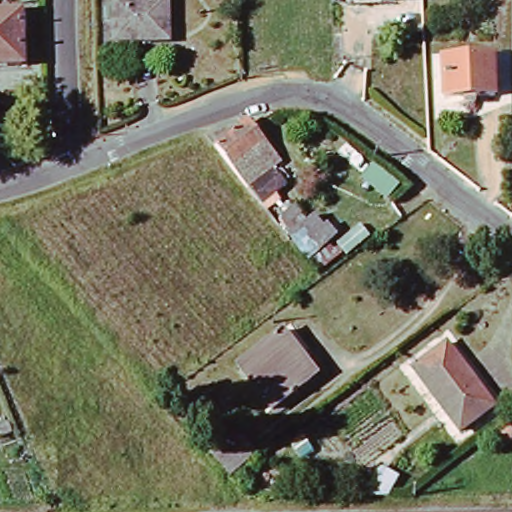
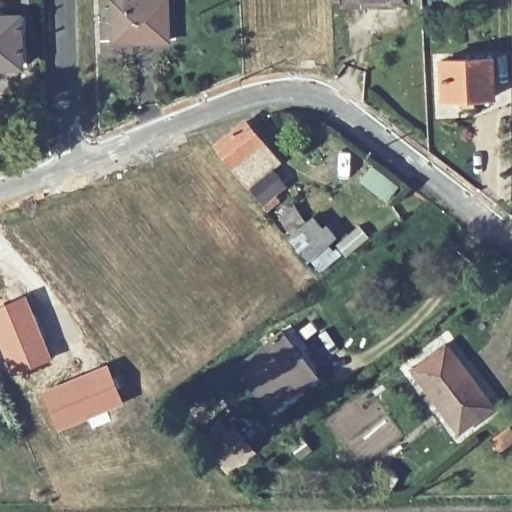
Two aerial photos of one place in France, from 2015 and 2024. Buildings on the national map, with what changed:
unchanged [(112,0),(123,0),(166,0),(169,42),(114,45),(112,0)]
unchanged [(347,0),(374,0),(375,5),(347,6),(347,0)]
unchanged [(403,3),(375,5),(374,0),(403,0),(403,3)]
unchanged [(20,28),(27,27),(28,39),(20,39),(20,62),(0,63),(0,13),(20,12),(20,28)]
unchanged [(443,96),(442,63),(448,58),(492,57),(493,95),(443,96)]
unchanged [(252,184),(221,142),(249,120),(280,161),(252,184)]
unchanged [(342,254),(321,270),(279,217),(293,203),(342,254)]
new [(52,358),(10,373),(0,351),(0,305),(25,293),(52,358)]
unchanged [(280,334),(315,380),(275,410),(240,365),(280,334)]
unchanged [(466,365),(496,401),(463,430),(412,370),(443,344),(463,368),(466,365)]
new [(106,362),(122,403),(107,410),(111,420),(91,428),(87,418),(55,431),(39,392),(106,362)]
unchanged [(247,460),(225,477),(216,466),(238,449),(247,460)]

